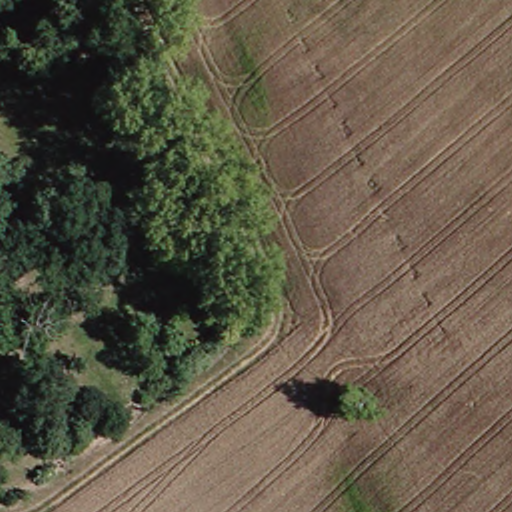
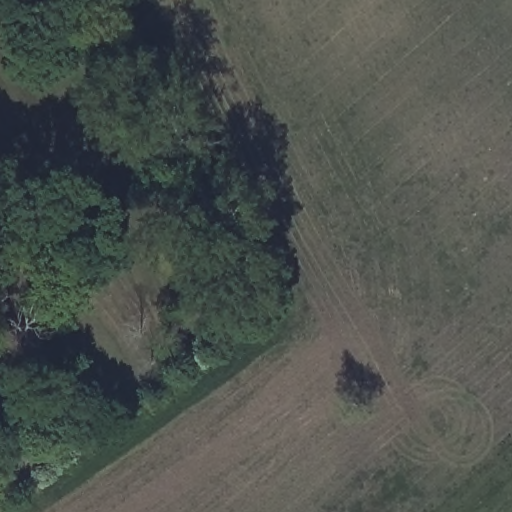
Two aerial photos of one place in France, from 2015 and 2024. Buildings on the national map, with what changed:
[]

